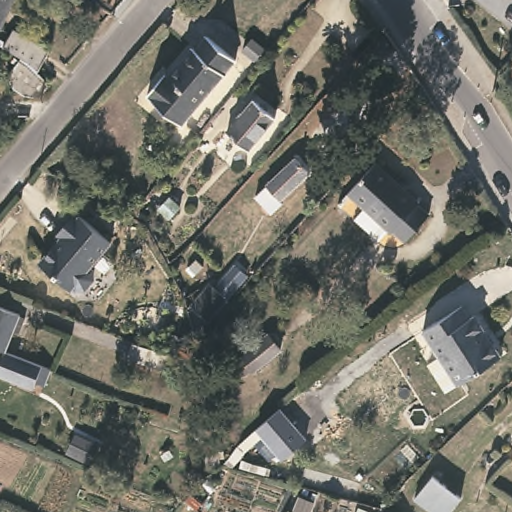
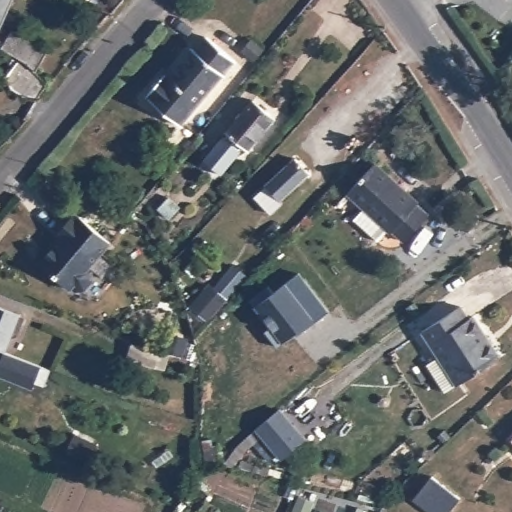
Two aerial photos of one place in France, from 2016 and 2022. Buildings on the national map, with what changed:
unchanged [(0,18),(0,0),(8,0),(0,18)]
unchanged [(44,94),(42,97),(24,95),(17,91),(9,76),(23,58),(5,48),(16,29),(51,51),(40,72),(50,88),(44,94)]
unchanged [(237,60),(183,124),(149,95),(180,60),(183,63),(196,49),(197,50),(209,36),(237,60)]
unchanged [(277,116),(251,149),(228,132),(254,99),(277,116)]
unchanged [(422,202),(422,206),(432,214),(405,243),(383,225),(350,194),(378,162),(422,202)]
unchanged [(306,177),(279,204),(264,190),(291,163),(306,177)]
unchanged [(171,220),(159,209),(172,195),(183,207),(171,220)]
unchanged [(93,270),(94,281),(87,289),(77,291),(73,288),(71,290),(41,264),(61,242),(56,238),(77,213),(98,230),(113,242),(104,252),(116,262),(103,278),(93,270)]
unchanged [(199,273),(192,267),(198,259),(206,266),(199,273)]
unchanged [(248,273),(230,296),(217,285),(237,263),(248,273)]
new [(315,321),(284,342),(278,346),(266,330),(272,326),(256,305),(251,298),(269,284),(273,291),(287,282),(300,272),(330,311),(315,321)]
unchanged [(173,299),(167,291),(175,284),(182,292),(173,299)]
unchanged [(22,312),(22,315),(27,317),(21,333),(15,331),(8,350),(0,347),(0,304),(22,312)]
unchanged [(471,317),(477,314),(503,356),(447,392),(428,360),(437,353),(424,331),(464,305),(471,317)]
demolished [(283,348),(255,372),(243,357),(270,333),(283,348)]
unchanged [(161,349),(156,363),(129,354),(133,340),(161,349)]
unchanged [(49,385),(39,381),(37,387),(0,372),(9,350),(22,356),(46,365),(55,368),(49,385)]
unchanged [(305,438),(280,458),(257,427),(281,408),(305,438)]
unchanged [(96,441),(91,453),(67,442),(72,431),(96,441)]
unchanged [(223,461),(207,465),(205,457),(204,445),(218,442),(223,461)]
unchanged [(426,503),(416,497),(436,471),(442,476),(439,481),(460,496),(450,512),(426,512),(427,508),(425,506),(426,503)]
unchanged [(0,512),(0,500),(5,502),(1,512),(0,512)]

